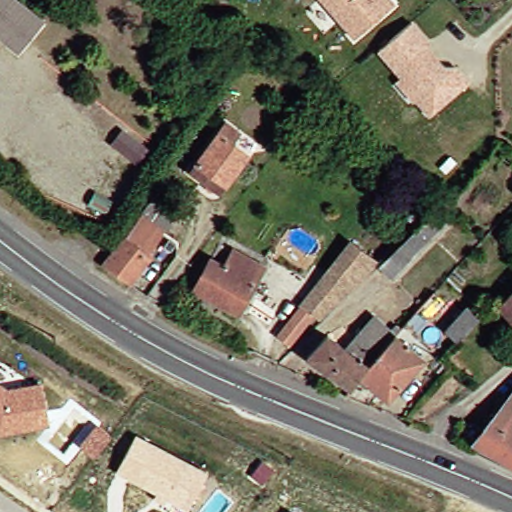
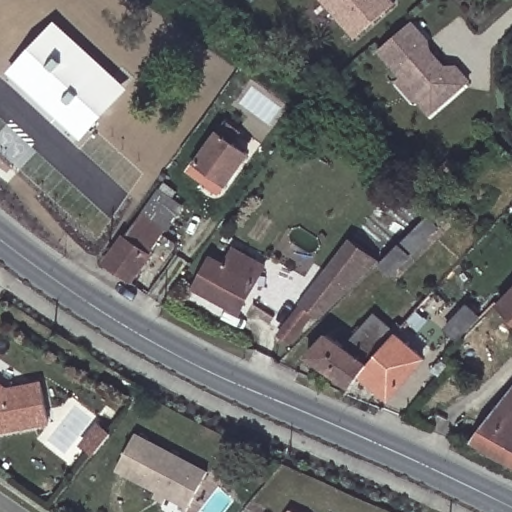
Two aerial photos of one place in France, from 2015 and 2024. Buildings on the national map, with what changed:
unchanged [(26,0),(45,15),(20,46),(0,30),(0,0),(26,0)]
unchanged [(352,40),(318,0),(388,0),(392,5),(352,40)]
new [(56,19),(130,87),(82,140),(9,72),(56,19)]
unchanged [(395,83),(400,79),(376,52),(409,24),(425,42),(421,46),(446,75),(453,69),(466,82),(427,116),(415,102),(415,98),(410,102),(395,83)]
unchanged [(292,115),(285,109),(291,101),(278,90),(283,82),(305,99),(292,115)]
unchanged [(190,172),(222,127),(250,148),(219,192),(190,172)]
unchanged [(141,217),(150,204),(149,202),(156,192),(182,211),(165,236),(163,238),(127,286),(104,270),(141,217)]
unchanged [(435,227),(438,230),(389,277),(378,267),(437,209),(445,216),(435,227)]
unchanged [(197,287),(222,242),(237,247),(254,255),(268,262),(248,300),(242,311),(232,306),(197,287)]
unchanged [(276,336),(304,297),(316,305),(289,345),(276,336)]
unchanged [(512,297),(512,315),(503,307),(512,297)]
unchanged [(364,372),(354,384),(311,352),(331,331),(348,343),(377,312),(399,331),(364,372)]
unchanged [(475,318),(488,330),(469,351),(457,340),(475,318)]
unchanged [(399,331),(429,357),(394,397),(364,372),(399,331)]
unchanged [(50,424),(0,434),(0,381),(9,386),(41,380),(50,424)]
unchanged [(512,385),(512,406),(502,400),(512,385)]
unchanged [(502,400),(512,406),(512,467),(472,445),(502,400)]
unchanged [(210,470),(190,509),(115,470),(136,433),(210,470)]
unchanged [(290,510),(294,512),(288,512),(290,510)]

